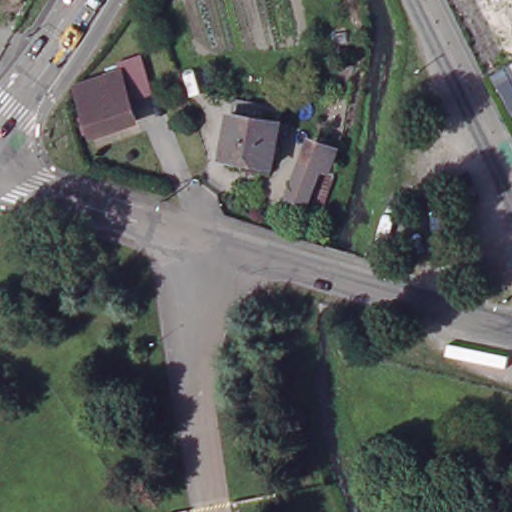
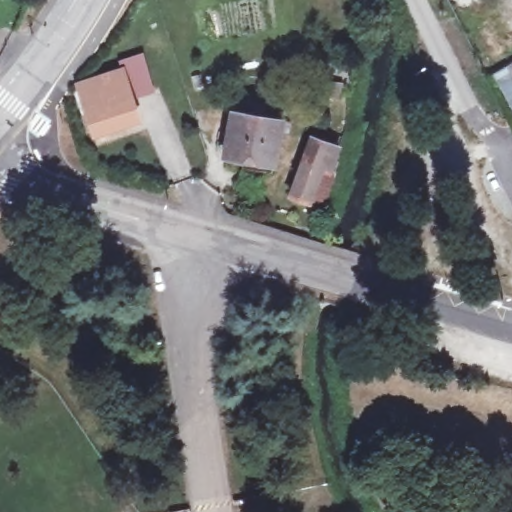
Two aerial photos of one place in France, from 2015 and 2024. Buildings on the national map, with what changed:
unchanged [(136,99),(142,121),(101,135),(87,90),(115,81),(112,68),(146,57),(156,92),(136,99)]
unchanged [(344,85),(342,102),(331,101),(333,84),(344,85)]
unchanged [(283,129),(275,174),(226,166),(234,120),(237,106),(285,114),(283,129)]
unchanged [(324,210),(312,205),(292,197),(314,138),(328,144),(331,135),(342,138),(339,148),(340,148),(336,162),(332,174),(336,176),(324,210)]

